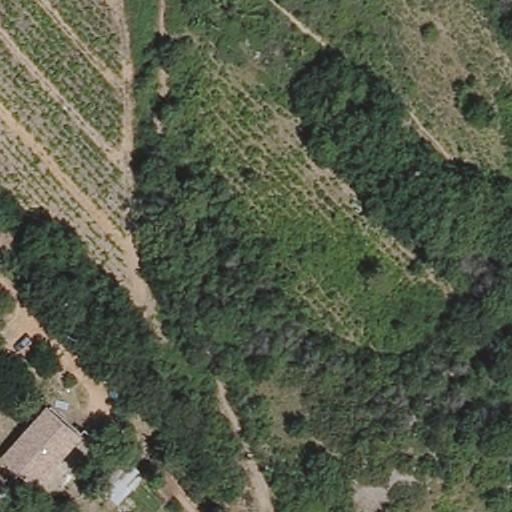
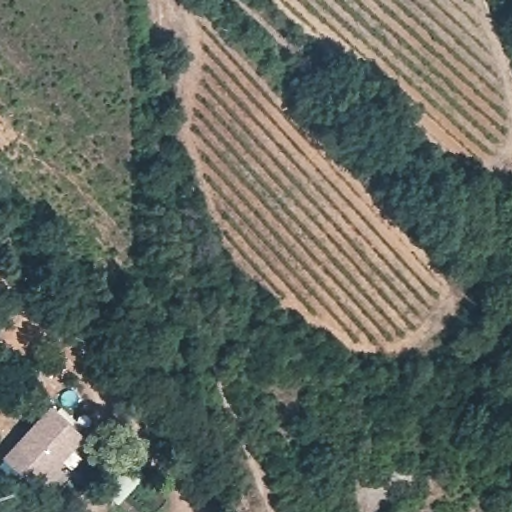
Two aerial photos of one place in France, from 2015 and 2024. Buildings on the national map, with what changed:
unchanged [(84,442),(39,493),(0,459),(0,455),(44,403),(84,442)]

